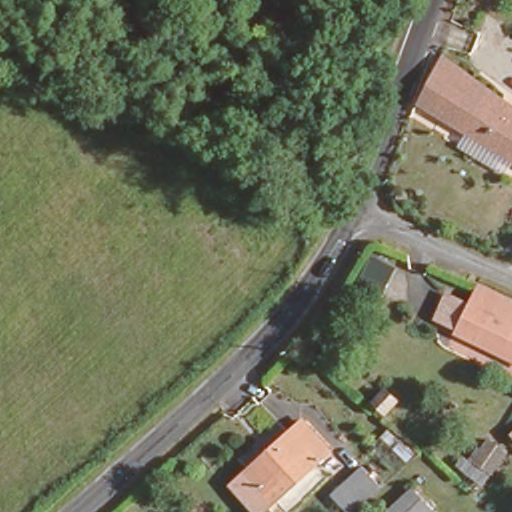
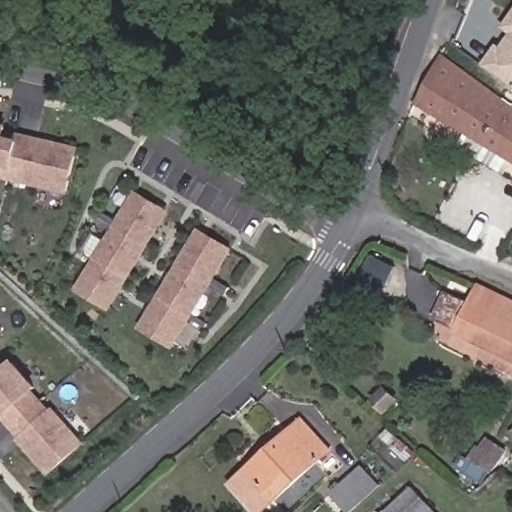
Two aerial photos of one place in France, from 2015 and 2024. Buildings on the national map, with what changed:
unchanged [(292,2),(288,4),(285,5),(281,4),(278,2),(276,0),(295,0),(292,2)]
new [(512,13),(512,86),(482,64),(485,59),(487,61),(512,29),(505,24),(512,13)]
unchanged [(424,107),(450,64),(512,103),(512,160),(424,107)]
new [(80,147),(68,194),(0,178),(0,123),(9,125),(80,147)]
new [(76,289),(135,190),(170,210),(111,310),(76,289)]
new [(198,227),(234,247),(174,347),(140,327),(198,227)]
new [(371,255),(397,267),(384,294),(358,282),(371,255)]
unchanged [(446,327),(428,317),(440,293),(458,303),(466,287),(512,311),(512,362),(446,327)]
new [(16,438),(19,436),(2,417),(0,415),(0,370),(13,359),(38,387),(33,391),(50,410),(51,407),(84,444),(49,475),(16,438)]
unchanged [(363,383),(351,396),(341,384),(352,372),(363,383)]
unchanged [(301,410),(336,448),(270,512),(255,512),(227,475),(301,410)]
new [(512,429),(512,433),(510,431),(512,429)]
demolished [(459,431),(476,441),(463,465),(444,454),(459,431)]
unchanged [(486,438),(503,448),(490,472),(471,461),(486,438)]
unchanged [(365,460),(387,483),(359,512),(354,512),(333,491),(365,460)]
unchanged [(413,478),(439,512),(376,512),(413,478)]

